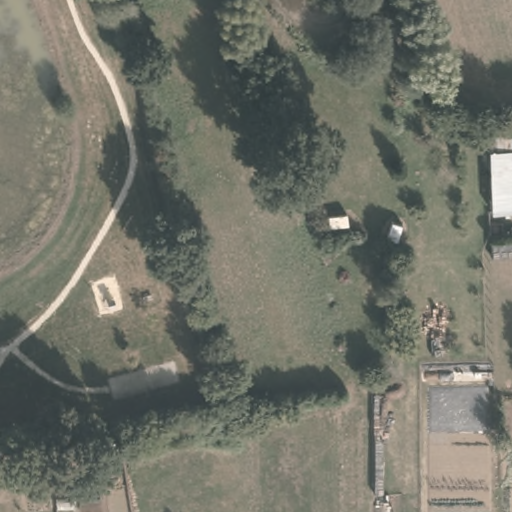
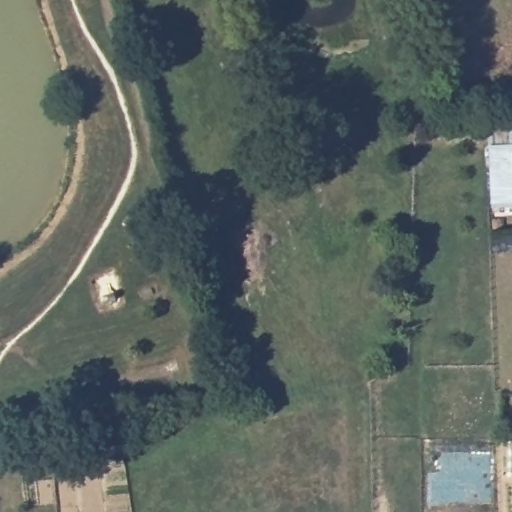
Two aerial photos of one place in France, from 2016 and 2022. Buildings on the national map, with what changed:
unchanged [(512,168),(512,207),(492,208),(488,146),(510,145),(512,168)]

